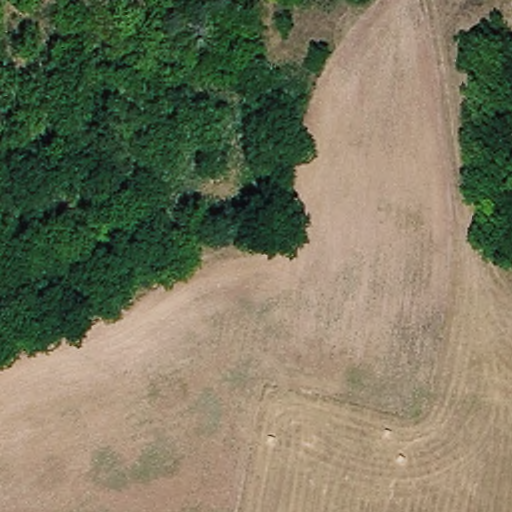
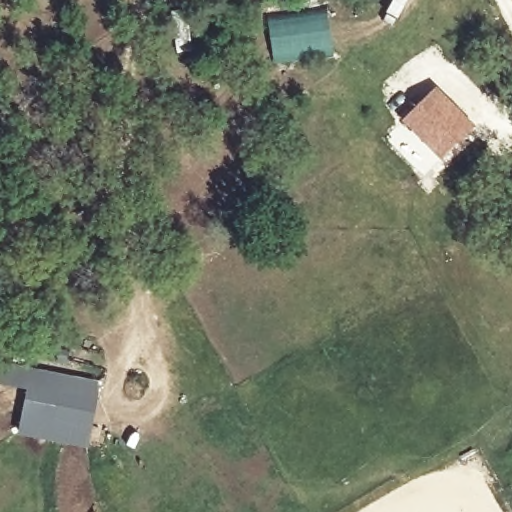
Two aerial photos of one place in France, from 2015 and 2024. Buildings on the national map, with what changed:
new [(334,54),(274,63),(266,15),(326,5),(334,54)]
new [(474,127),(442,160),(401,122),(436,88),(474,127)]
new [(30,388),(95,400),(86,445),(21,433),(30,388)]

